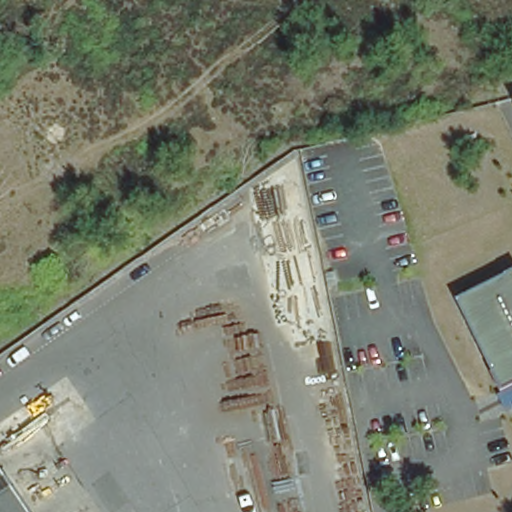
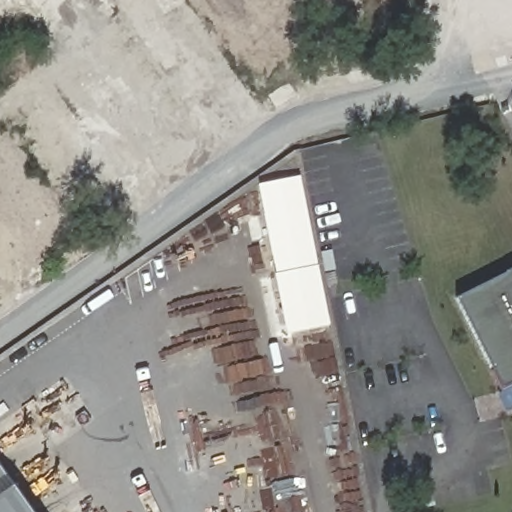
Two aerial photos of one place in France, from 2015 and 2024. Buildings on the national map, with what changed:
new [(329,327),(289,335),(259,186),(300,177),(329,327)]
unchanged [(499,387),(453,294),(512,264),(512,381),(499,387)]
unchanged [(0,512),(0,471),(29,512),(0,512)]
demolished [(368,512),(332,512),(329,496),(364,490),(368,512)]

